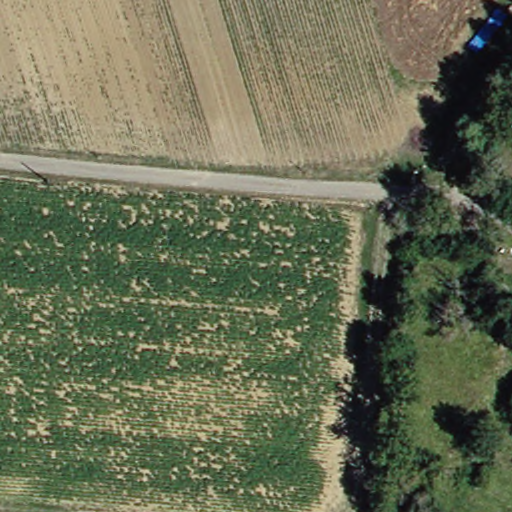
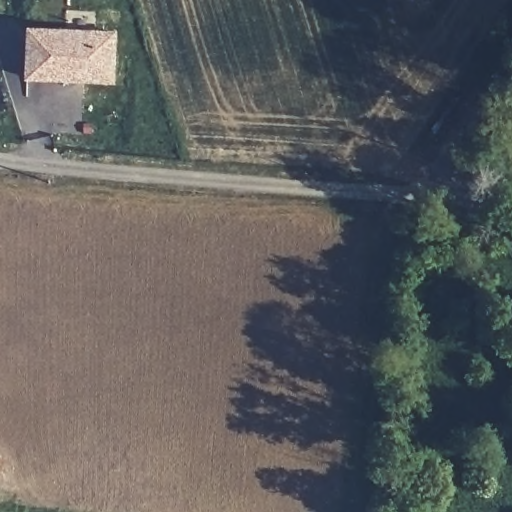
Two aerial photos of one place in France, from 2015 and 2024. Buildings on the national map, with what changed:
new [(116,31),(114,80),(28,75),(30,27),(116,31)]

